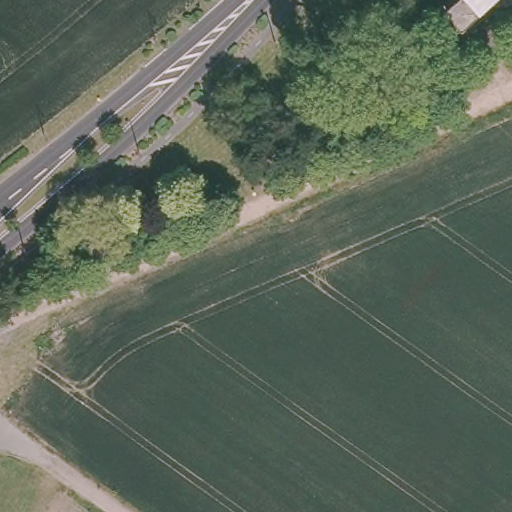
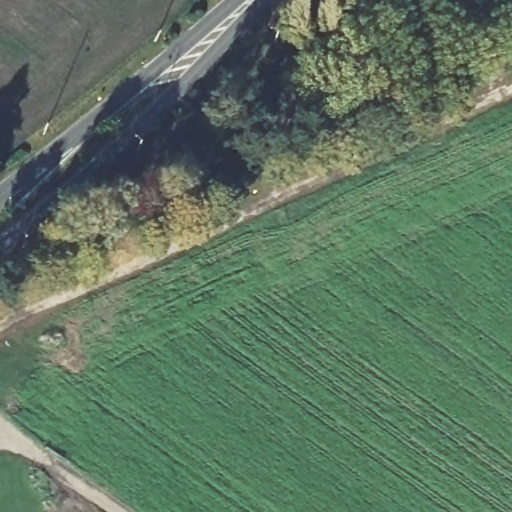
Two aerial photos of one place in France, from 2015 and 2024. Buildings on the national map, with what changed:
unchanged [(493,0),(463,31),(442,9),(451,0),(493,0)]

